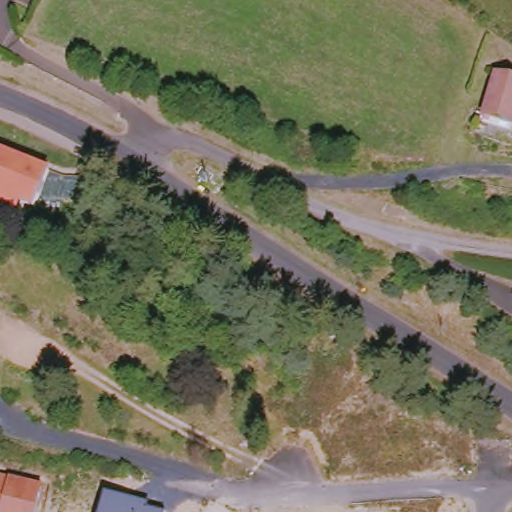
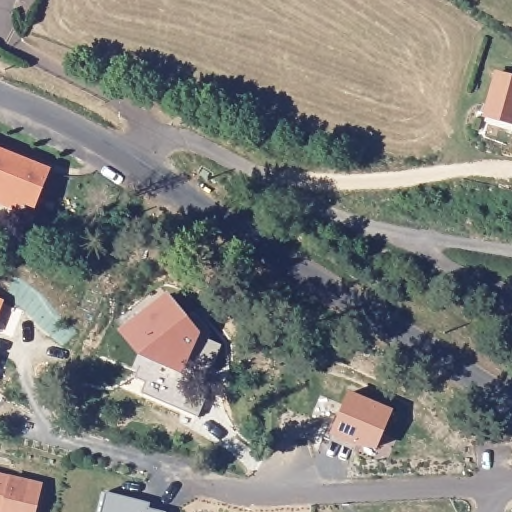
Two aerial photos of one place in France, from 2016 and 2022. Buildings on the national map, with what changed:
unchanged [(503,80),(512,83),(512,125),(491,117),(503,80)]
unchanged [(51,168),(33,211),(19,206),(17,213),(0,206),(0,147),(51,168)]
new [(185,319),(194,311),(212,333),(206,340),(221,345),(212,369),(186,359),(181,370),(143,355),(148,345),(130,324),(166,295),(185,319)]
unchanged [(3,352),(0,360),(0,351),(3,352)]
new [(349,392),(393,411),(377,449),(354,446),(330,436),(349,392)]
unchanged [(7,475),(7,476),(41,484),(36,512),(0,512),(0,474),(7,475)]
unchanged [(105,493),(148,504),(146,509),(158,512),(100,512),(105,493)]

